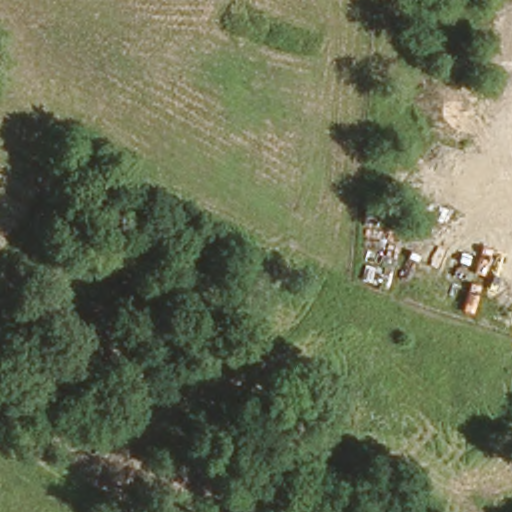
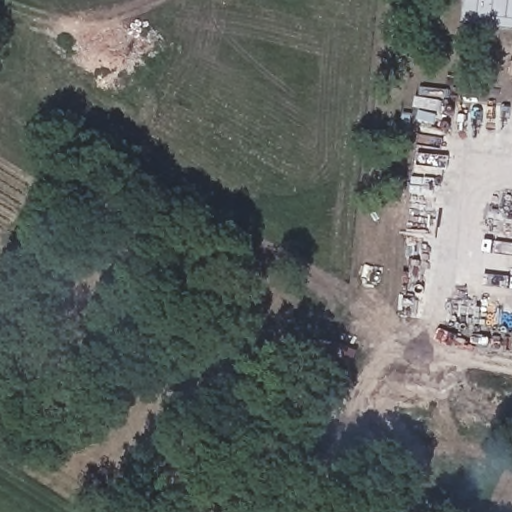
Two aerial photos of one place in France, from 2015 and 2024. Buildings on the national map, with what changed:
new [(464,24),(467,0),(512,0),(512,28),(464,24)]

